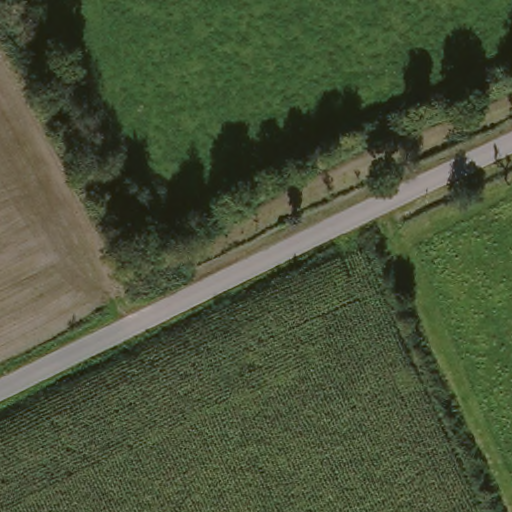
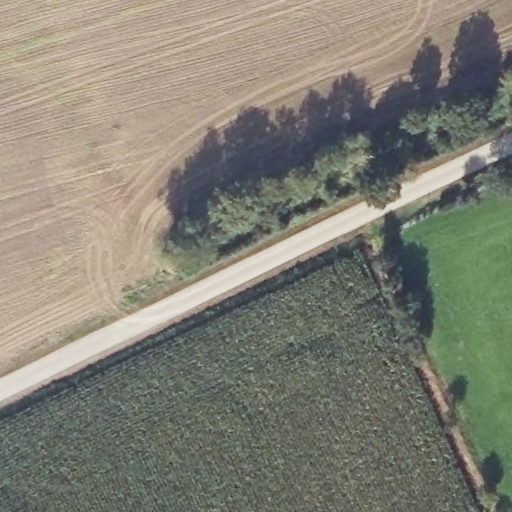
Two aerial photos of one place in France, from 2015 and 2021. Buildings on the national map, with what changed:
[]

